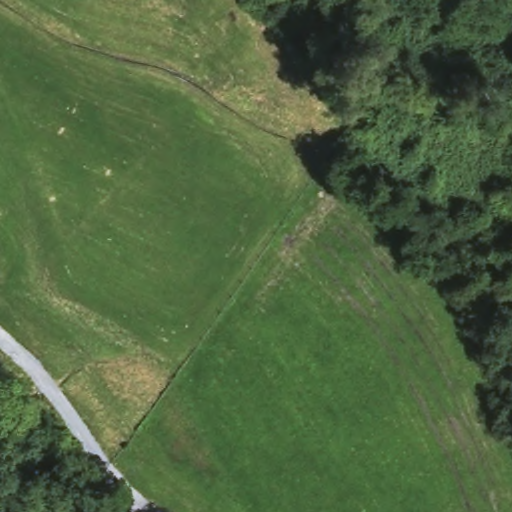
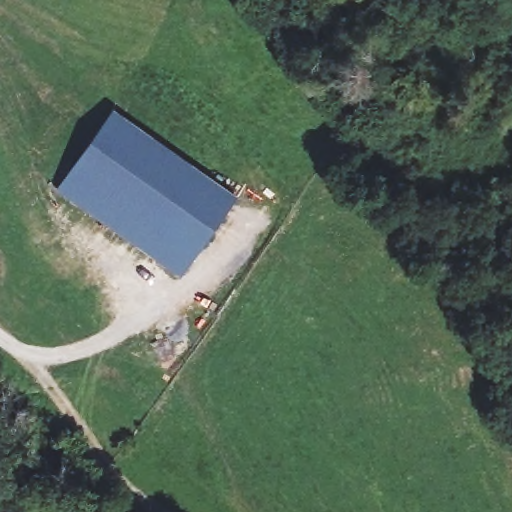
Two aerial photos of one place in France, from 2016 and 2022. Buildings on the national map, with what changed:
new [(111,111),(235,203),(190,264),(66,172),(111,111)]
new [(66,172),(190,264),(178,279),(55,187),(66,172)]

